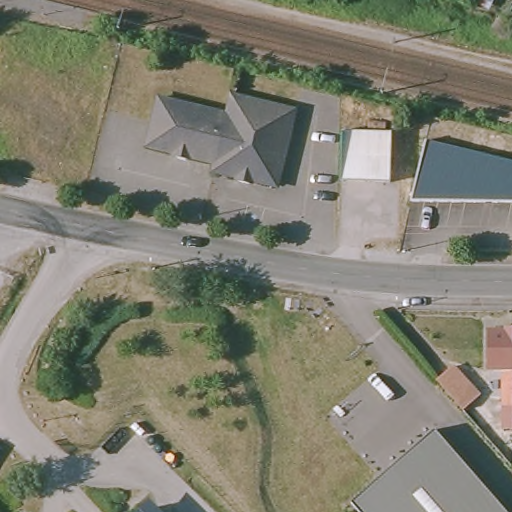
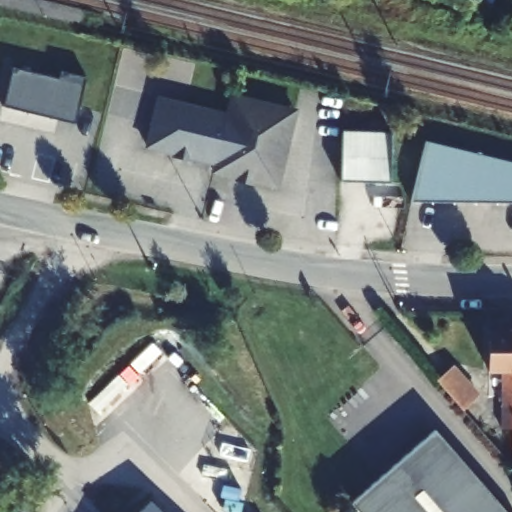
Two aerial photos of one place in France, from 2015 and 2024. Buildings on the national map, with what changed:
new [(12,70),(63,80),(64,77),(87,82),(75,128),(2,110),(12,70)]
unchanged [(277,177),(253,172),(249,175),(238,173),(236,168),(213,162),(215,155),(227,105),(232,86),(295,101),(277,177)]
unchanged [(191,149),(186,151),(177,149),(173,144),(147,137),(158,90),(227,105),(215,155),(191,149)]
unchanged [(390,184),(340,181),(342,132),(391,134),(390,184)]
unchanged [(512,162),(512,203),(412,201),(427,140),(512,162)]
unchanged [(501,433),(500,367),(487,367),(488,326),(492,326),(495,323),(502,323),(505,326),(512,326),(512,433),(501,433)]
unchanged [(463,411),(455,402),(437,380),(452,366),(472,388),(478,396),(463,411)]
unchanged [(435,430),(505,512),(357,512),(350,503),(435,430)]
unchanged [(152,512),(134,512),(140,506),(144,503),(152,512)]

